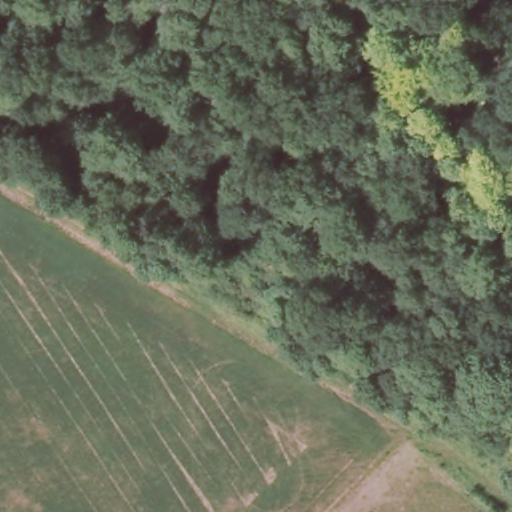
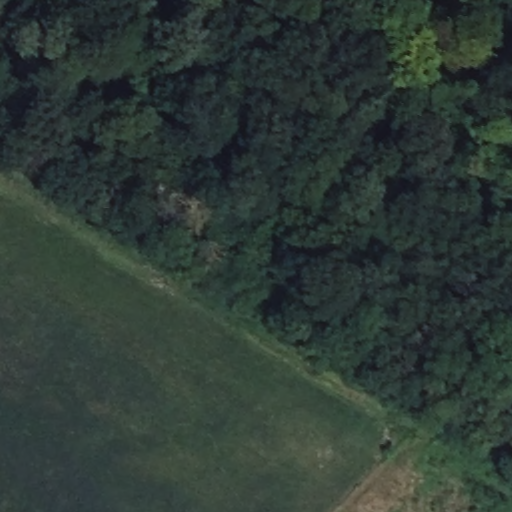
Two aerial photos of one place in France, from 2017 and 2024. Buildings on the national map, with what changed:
[]

